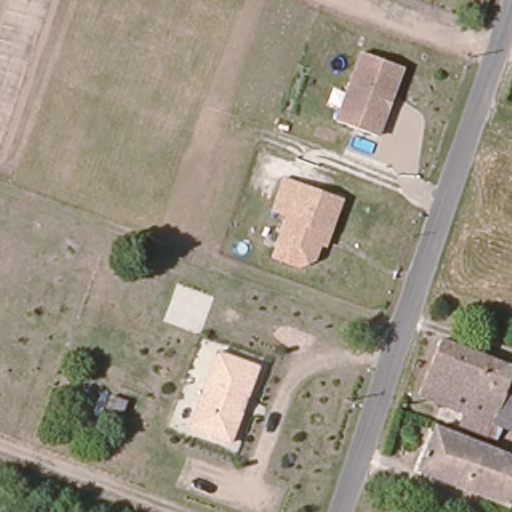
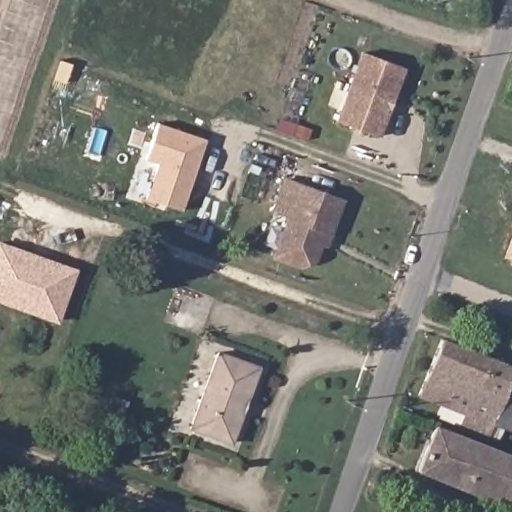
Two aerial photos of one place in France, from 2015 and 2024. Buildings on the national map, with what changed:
unchanged [(377,135),(336,120),(362,50),(401,65),(377,135)]
new [(145,160),(157,122),(206,139),(181,210),(145,199),(157,163),(145,160)]
unchanged [(272,254),(286,214),(272,209),(281,179),(337,198),(326,228),(321,226),(310,255),(294,262),(272,254)]
new [(512,231),(512,261),(502,257),(512,231)]
new [(57,323),(0,302),(0,241),(77,269),(57,323)]
unchanged [(466,410),(418,388),(440,335),(489,356),(512,366),(512,371),(491,422),(487,432),(461,421),(466,410)]
unchanged [(233,442),(190,427),(219,350),(260,365),(233,442)]
unchanged [(419,466),(437,423),(512,455),(512,496),(509,503),(419,466)]

